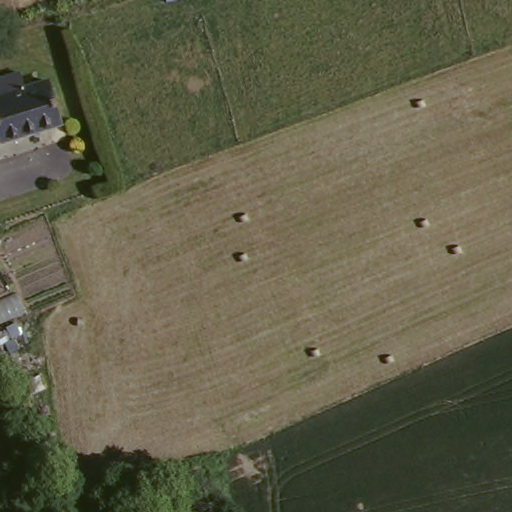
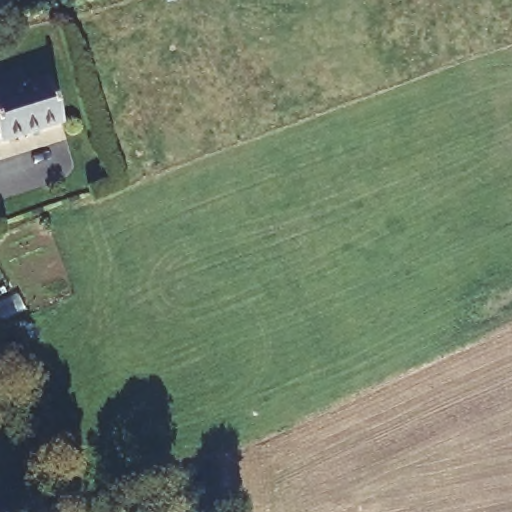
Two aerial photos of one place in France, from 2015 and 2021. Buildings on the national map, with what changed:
unchanged [(0,141),(0,79),(17,74),(22,87),(46,80),(61,125),(1,145),(0,141)]

